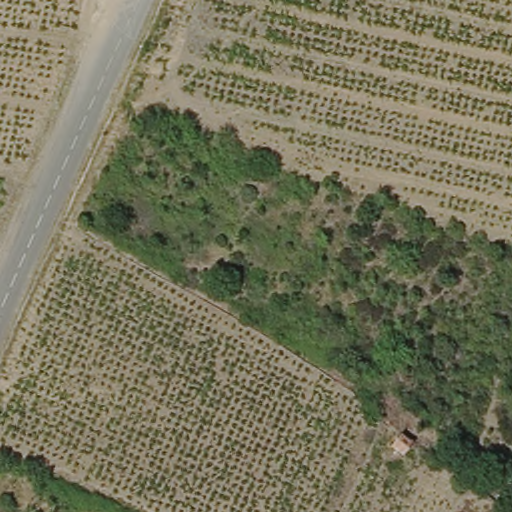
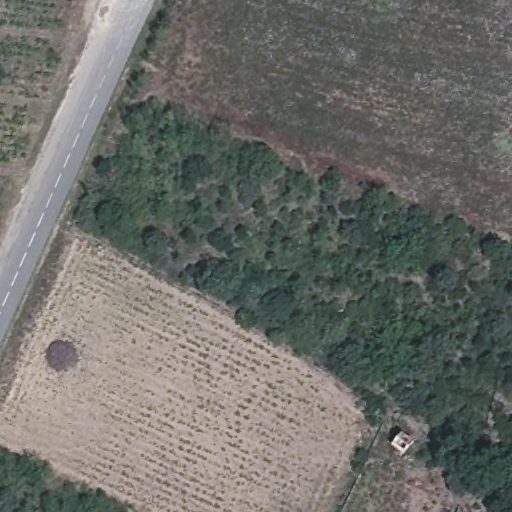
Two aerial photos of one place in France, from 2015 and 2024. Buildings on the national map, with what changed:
unchanged [(392,443),(399,431),(414,442),(407,454),(392,443)]

